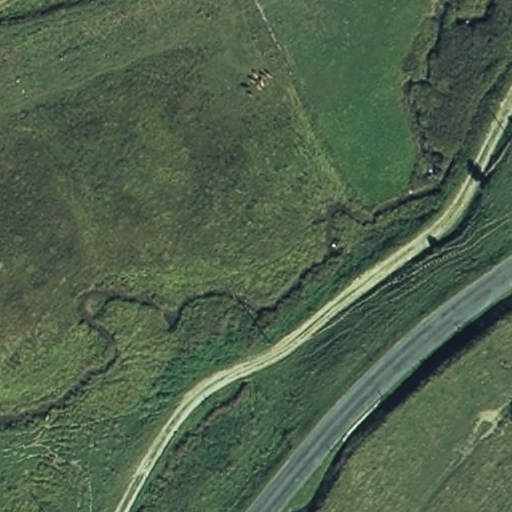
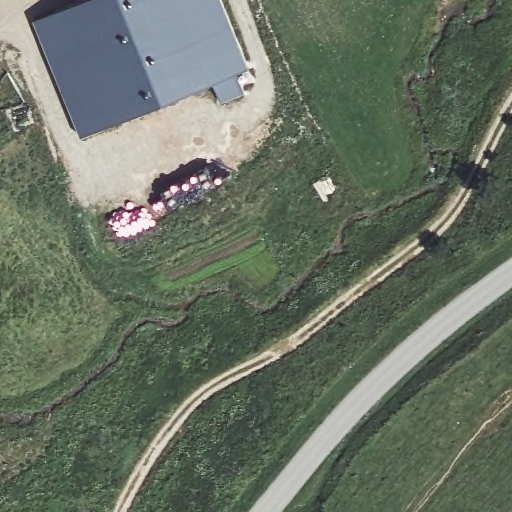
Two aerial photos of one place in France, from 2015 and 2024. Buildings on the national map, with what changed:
new [(86,0),(222,0),(250,68),(237,74),(245,92),(221,101),(214,82),(82,136),(35,21),(86,0)]

